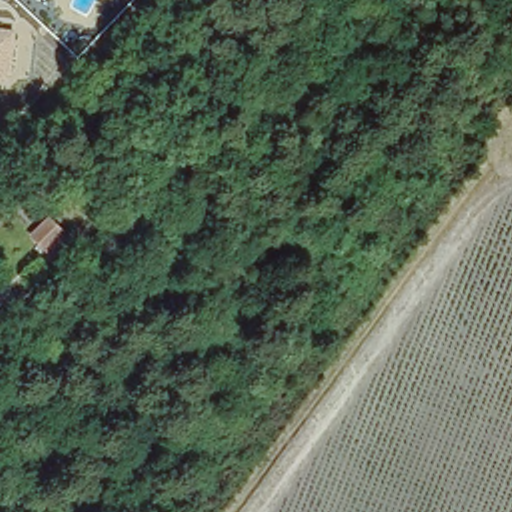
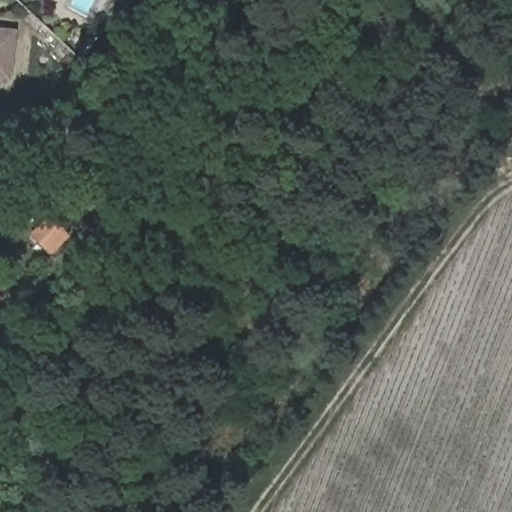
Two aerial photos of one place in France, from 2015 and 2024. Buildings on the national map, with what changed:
unchanged [(11,31),(7,77),(0,77),(0,30),(11,31)]
unchanged [(50,216),(64,230),(47,248),(33,234),(50,216)]

